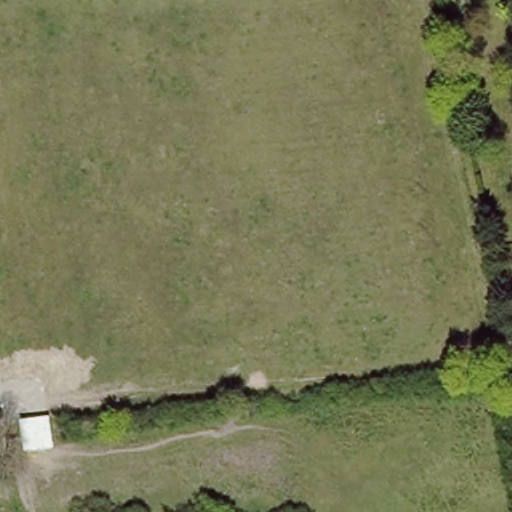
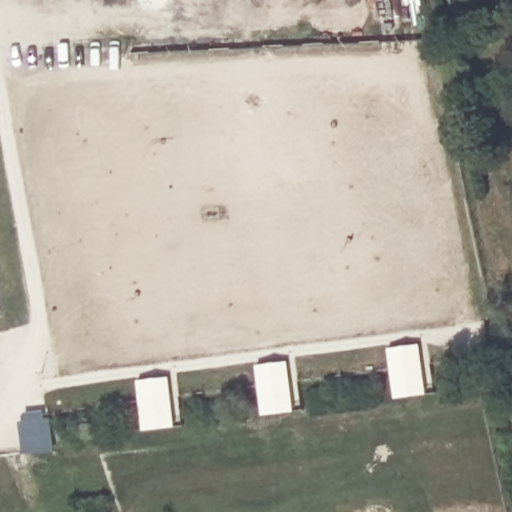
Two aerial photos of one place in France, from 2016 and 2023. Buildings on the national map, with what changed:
new [(419,343),(428,395),(393,400),(386,348),(419,343)]
new [(287,361),(294,411),(261,416),(253,365),(287,361)]
new [(169,377),(176,427),(143,431),(136,380),(169,377)]
new [(49,417),(54,448),(23,452),(19,421),(49,417)]

